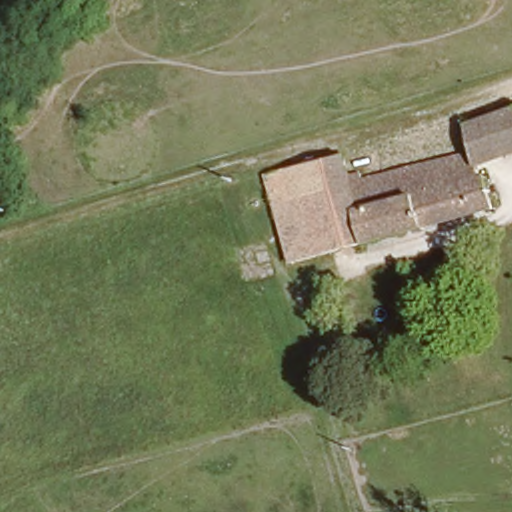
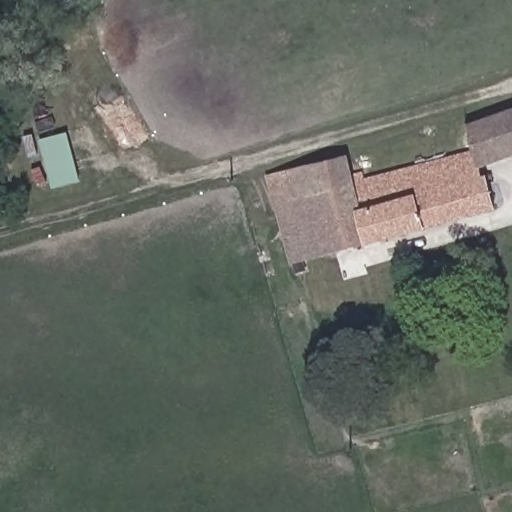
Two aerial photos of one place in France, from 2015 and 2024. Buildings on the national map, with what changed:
unchanged [(512,114),(512,149),(472,160),(466,126),(512,114)]
new [(39,140),(67,132),(81,182),(52,189),(39,140)]
unchanged [(477,182),(482,180),(490,215),(285,270),(267,204),(291,198),(287,181),(347,164),(352,175),(362,173),(365,186),(472,160),(477,182)]

